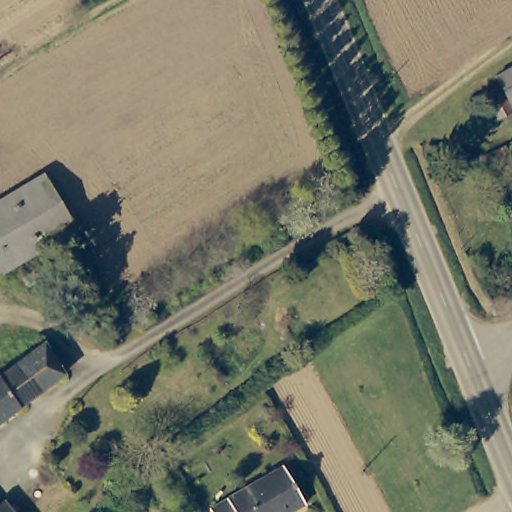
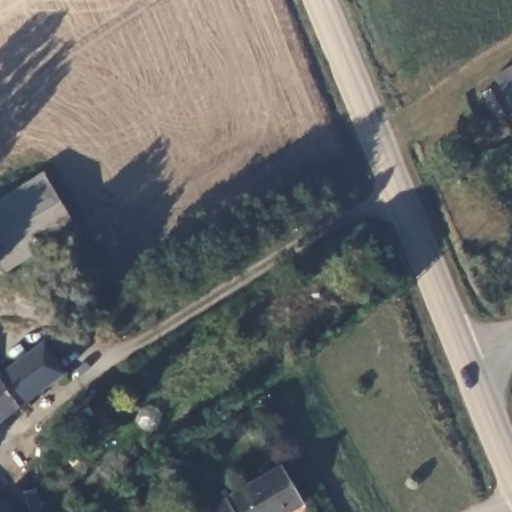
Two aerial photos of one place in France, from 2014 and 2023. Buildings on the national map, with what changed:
unchanged [(503,88),(512,83),(512,103),(503,88)]
unchanged [(0,205),(53,179),(55,183),(81,234),(1,272),(0,270),(0,205)]
unchanged [(42,354),(64,380),(0,428),(0,388),(25,367),(42,354)]
unchanged [(132,512),(99,512),(85,491),(92,487),(77,461),(96,452),(111,476),(124,496),(129,506),(132,512)]
unchanged [(287,464),(310,506),(299,512),(207,512),(206,511),(287,464)]
unchanged [(15,512),(0,512),(10,505),(15,512)]

